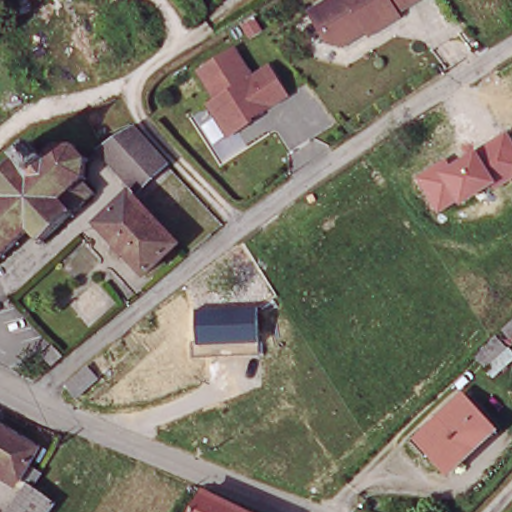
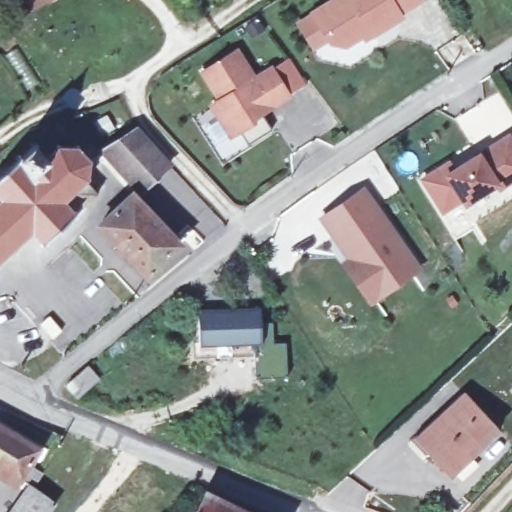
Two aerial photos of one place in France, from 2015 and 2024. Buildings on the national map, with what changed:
unchanged [(411,0),(414,5),(400,13),(403,18),(375,36),(372,31),(348,46),(332,43),(325,33),(315,15),(337,0),(411,0)]
unchanged [(221,118),(212,103),(220,98),(219,96),(203,70),(237,48),(253,74),(255,76),(272,66),(289,94),(252,118),(253,120),(239,129),(230,134),(221,118)]
unchanged [(166,162),(138,189),(118,166),(100,148),(132,127),(166,162)]
unchanged [(455,167),(510,134),(512,137),(512,183),(497,193),(494,188),(463,209),(460,206),(441,218),(418,180),(447,160),(455,167)]
unchanged [(35,146),(32,150),(43,162),(57,151),(57,146),(61,146),(62,150),(72,152),(75,149),(78,151),(76,155),(84,164),(87,161),(90,165),(86,166),(85,182),(91,183),(90,187),(85,187),(93,197),(74,215),(76,217),(72,221),(70,219),(42,243),(44,245),(40,249),(38,246),(35,249),(33,247),(37,243),(27,232),(19,241),(21,244),(17,248),(14,245),(3,256),(5,260),(2,263),(0,262),(0,174),(10,165),(8,162),(12,159),(15,161),(27,151),(23,148),(27,145),(29,147),(33,144),(35,146)]
unchanged [(173,240),(143,269),(97,222),(130,192),(173,240)]
new [(352,266),(334,240),(336,239),(324,222),(363,194),(375,211),(377,211),(420,274),(385,299),(372,308),(345,269),(351,265),(352,266)]
unchanged [(259,312),(261,356),(195,358),(193,344),(200,344),(197,314),(259,312)]
unchanged [(67,362),(56,371),(47,360),(58,351),(67,362)]
unchanged [(65,392),(86,376),(97,368),(108,380),(98,389),(77,405),(65,392)]
unchanged [(494,425),(447,467),(419,434),(463,393),(494,425)]
unchanged [(33,450),(15,478),(0,468),(0,429),(33,450)]
unchanged [(27,486),(33,492),(50,505),(45,512),(4,512),(27,486)]
unchanged [(240,512),(195,512),(206,493),(240,512)]

